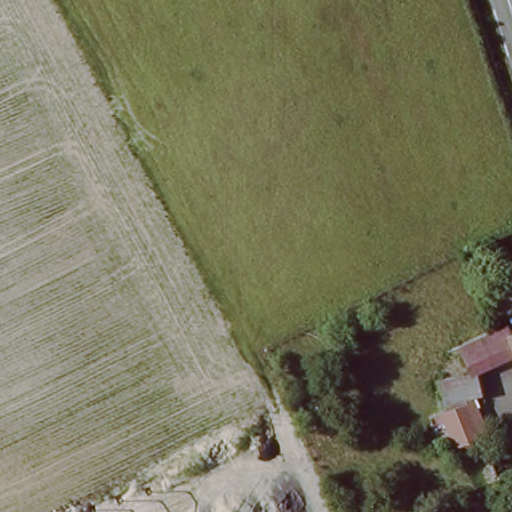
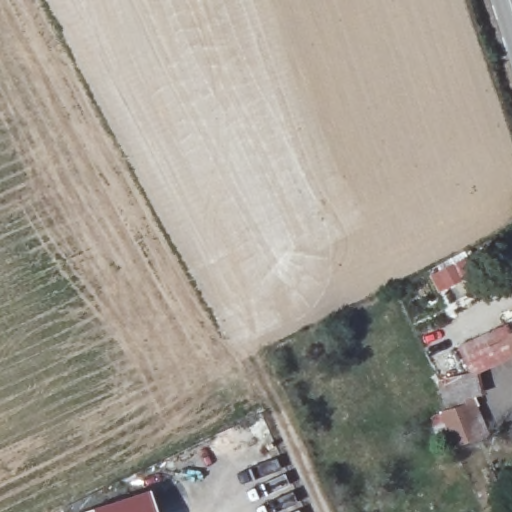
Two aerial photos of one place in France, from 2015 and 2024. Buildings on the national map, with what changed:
unchanged [(512,326),(512,348),(479,363),(469,357),(462,345),(512,326)]
unchanged [(477,400),(459,403),(452,380),(472,375),(477,400)]
unchanged [(484,441),(464,452),(447,422),(467,411),(484,441)]
new [(151,490),(158,512),(84,512),(92,509),(151,490)]

